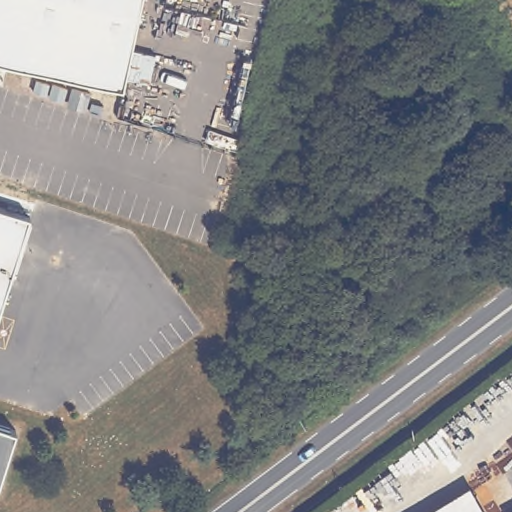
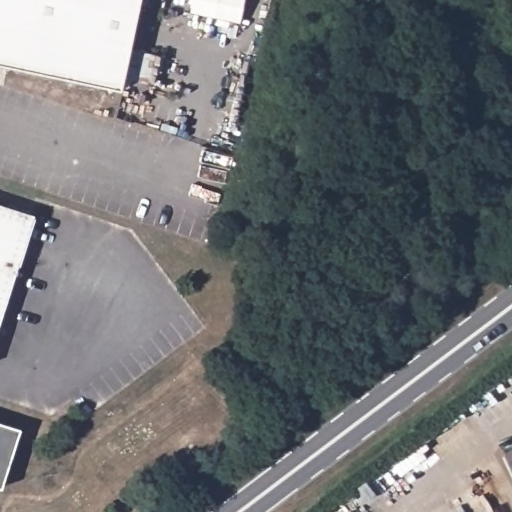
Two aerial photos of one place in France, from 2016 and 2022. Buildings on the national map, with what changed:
unchanged [(124,89),(0,63),(0,0),(143,0),(124,89)]
unchanged [(29,219),(0,310),(0,209),(29,219)]
unchanged [(15,427),(0,472),(0,422),(15,427)]
unchanged [(482,512),(444,512),(473,496),(482,512)]

